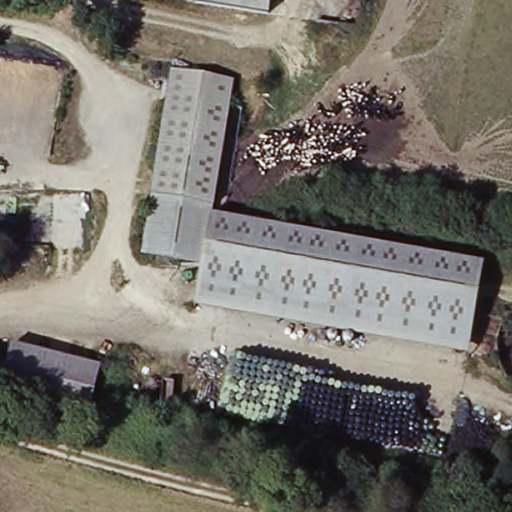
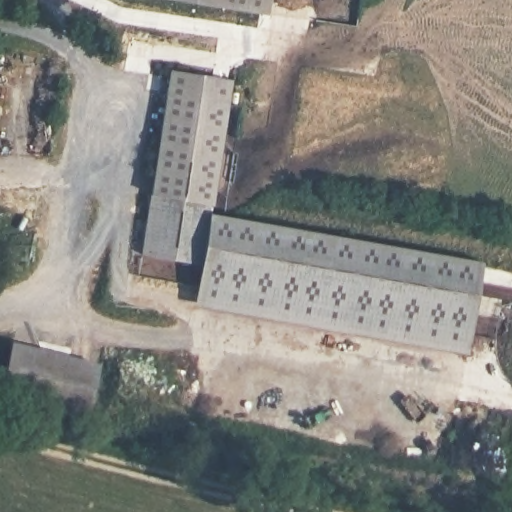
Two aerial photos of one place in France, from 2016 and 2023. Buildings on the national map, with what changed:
unchanged [(158,0),(196,0),(195,6),(158,0)]
unchanged [(195,6),(196,0),(271,0),(269,16),(195,6)]
unchanged [(172,75),(234,85),(214,211),(152,199),(172,75)]
unchanged [(204,270),(142,259),(152,199),(214,211),(204,270)]
unchanged [(214,211),(482,259),(467,354),(197,306),(204,270),(214,211)]
unchanged [(99,369),(89,412),(0,391),(0,386),(10,346),(99,369)]

